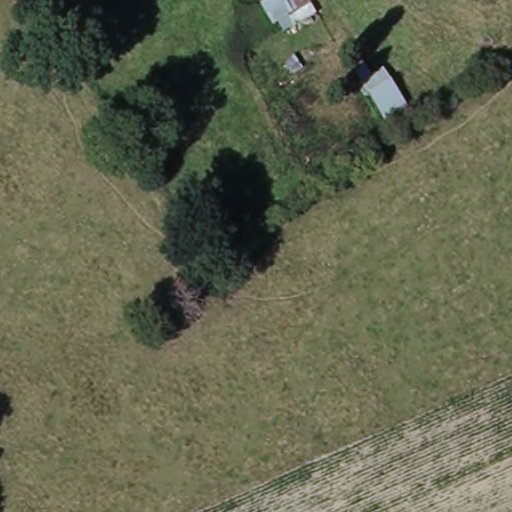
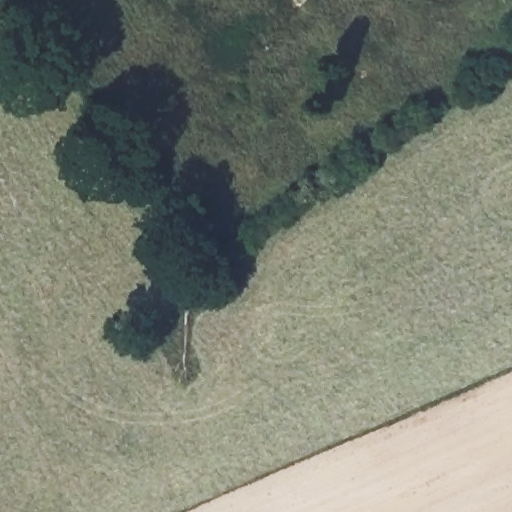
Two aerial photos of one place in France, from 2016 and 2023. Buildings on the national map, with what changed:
unchanged [(360,52),(371,73),(387,67),(408,101),(437,80),(449,106),(414,125),(406,112),(385,122),(346,60),(360,52)]

